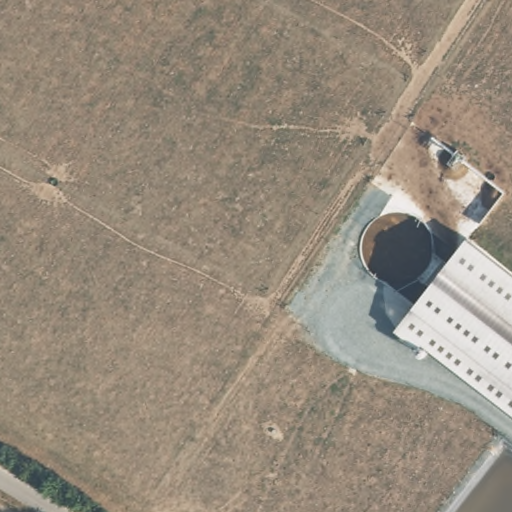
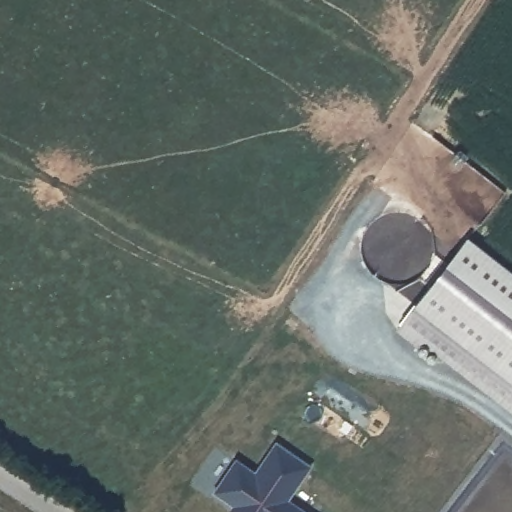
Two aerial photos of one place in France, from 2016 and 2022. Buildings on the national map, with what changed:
unchanged [(397,328),(467,237),(512,272),(512,415),(397,328)]
new [(255,470),(276,440),(312,465),(290,499),(308,512),(230,512),(228,510),(231,505),(213,492),(236,457),(255,470)]

